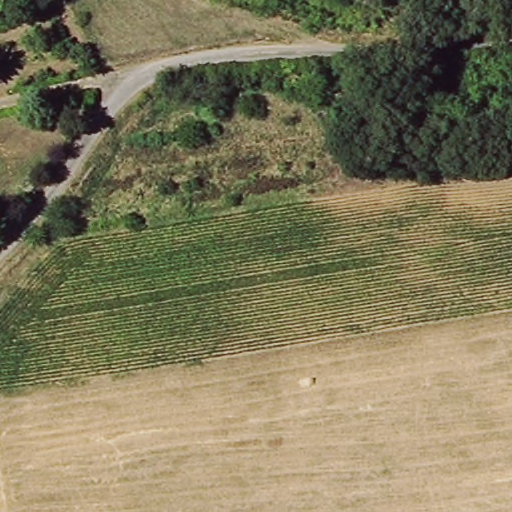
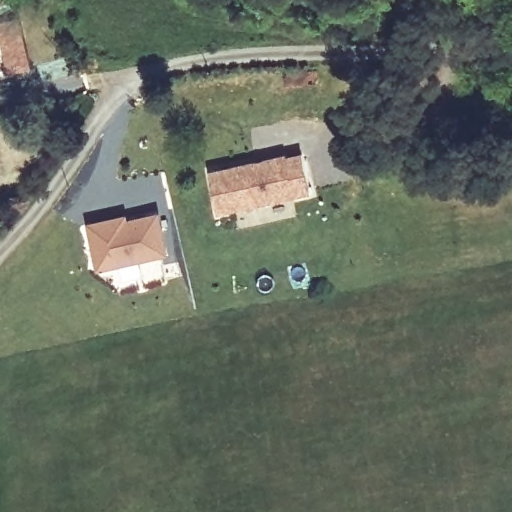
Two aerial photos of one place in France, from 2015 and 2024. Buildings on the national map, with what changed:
unchanged [(290,85),(290,71),(322,70),(323,83),(290,85)]
new [(262,162),(284,158),(284,160),(300,156),(308,195),(217,214),(208,174),(254,164),(262,162)]
new [(122,216),(122,221),(155,214),(164,254),(94,269),(84,224),(101,221),(122,216)]

